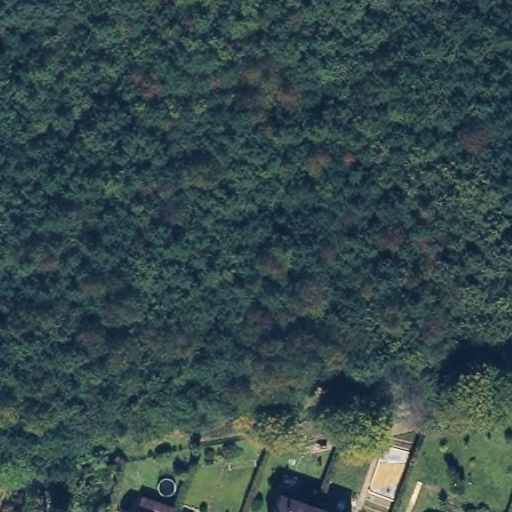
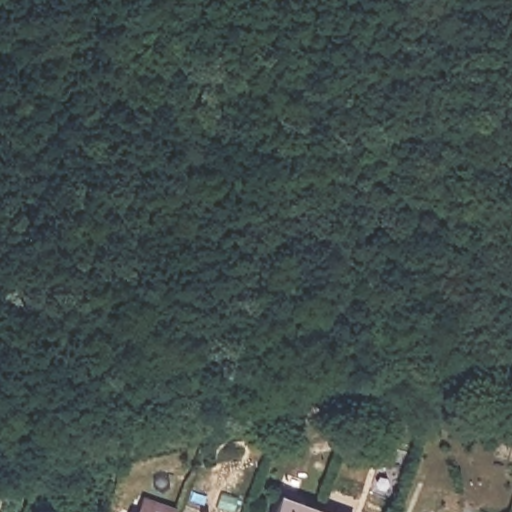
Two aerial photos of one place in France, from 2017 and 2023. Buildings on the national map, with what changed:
unchanged [(440,386),(434,405),(422,408),(421,390),(440,386)]
unchanged [(313,512),(273,512),(280,490),(317,503),(313,512)]
unchanged [(142,500),(173,510),(172,512),(138,512),(142,500)]
unchanged [(342,512),(313,512),(317,503),(342,512)]

